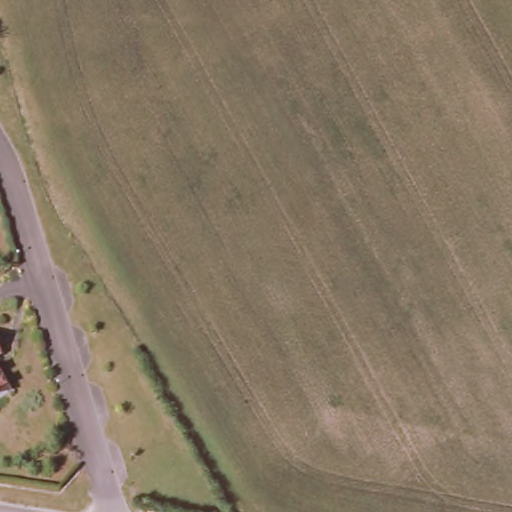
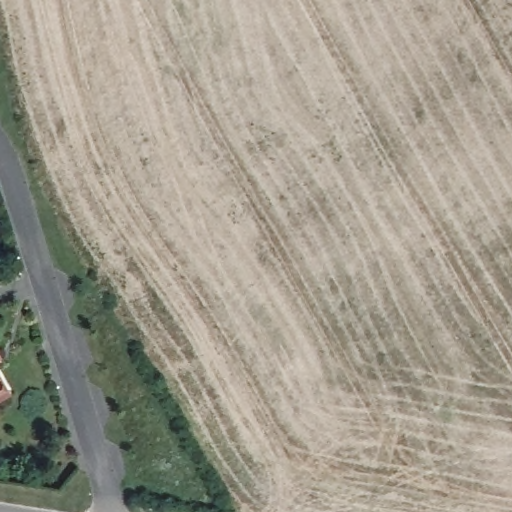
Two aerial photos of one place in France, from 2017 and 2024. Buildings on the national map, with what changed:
unchanged [(2,357),(0,358),(0,353),(2,357)]
unchanged [(10,395),(0,400),(0,375),(10,395)]

